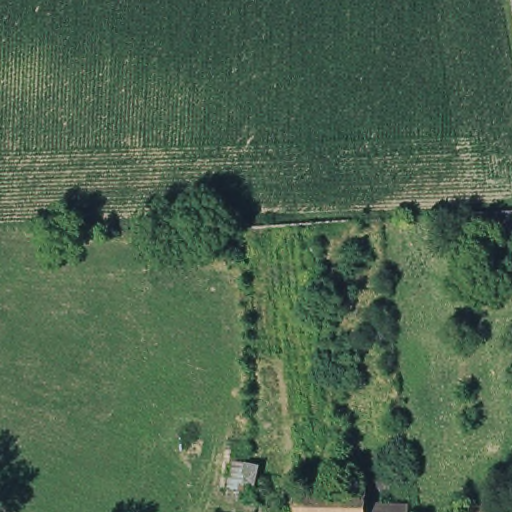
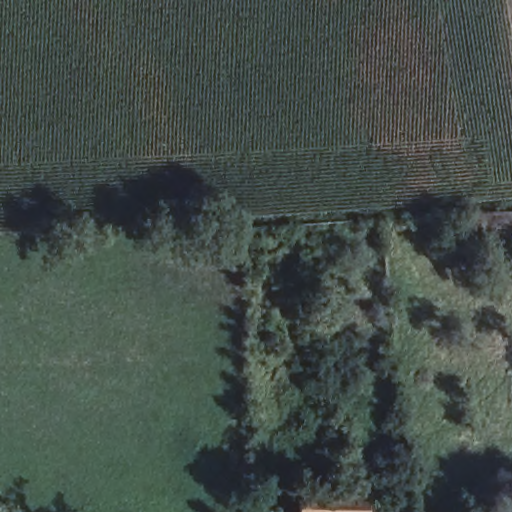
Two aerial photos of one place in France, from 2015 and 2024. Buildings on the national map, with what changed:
unchanged [(480,235),(457,236),(455,215),(512,210),(512,244),(480,245),(480,235)]
unchanged [(254,486),(245,484),(248,467),(257,469),(254,486)]
unchanged [(291,512),(290,494),(323,493),(323,478),(366,477),(367,512),(291,512)]
unchanged [(512,509),(512,512),(465,512),(465,511),(512,509)]

